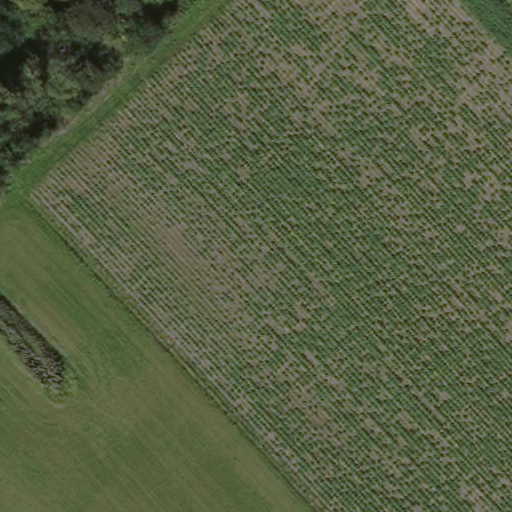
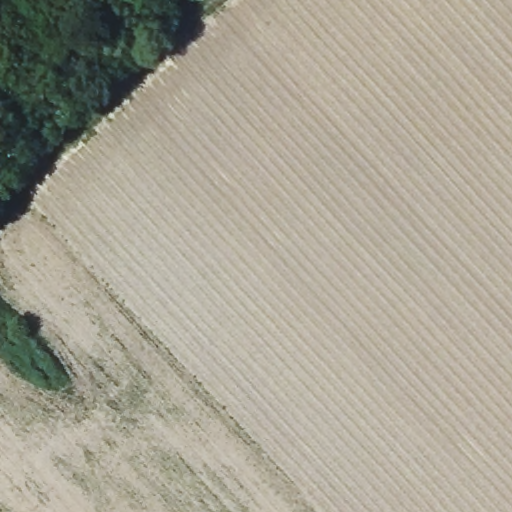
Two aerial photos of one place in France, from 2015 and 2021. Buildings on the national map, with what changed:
[]

